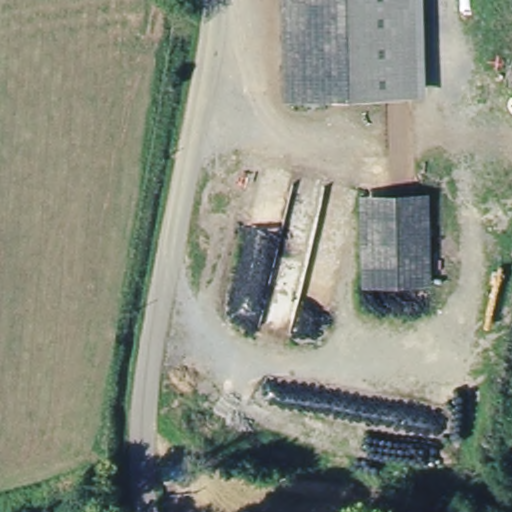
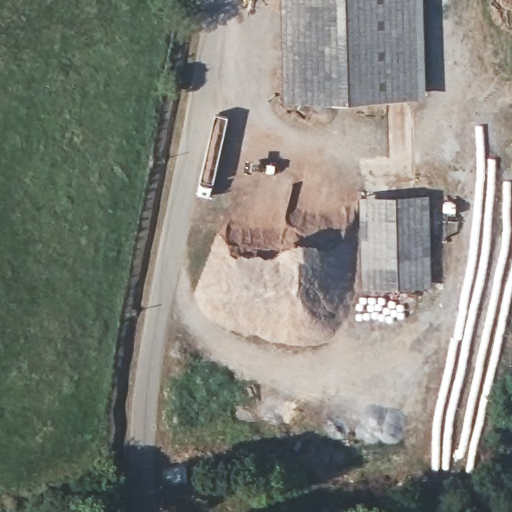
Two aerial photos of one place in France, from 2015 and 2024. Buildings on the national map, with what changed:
unchanged [(278,94),(281,0),(403,0),(400,98),(278,94)]
unchanged [(422,283),(353,281),(357,203),(427,203),(422,283)]

